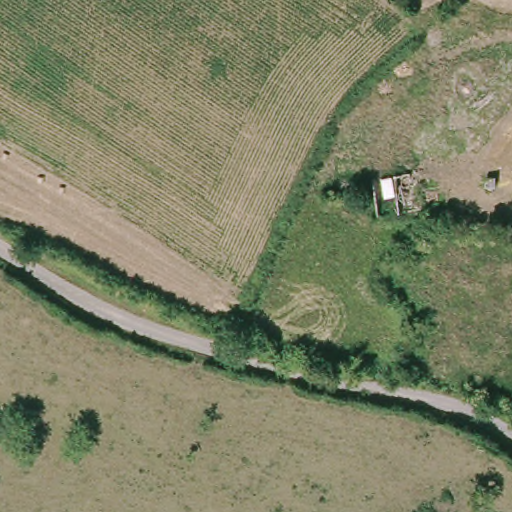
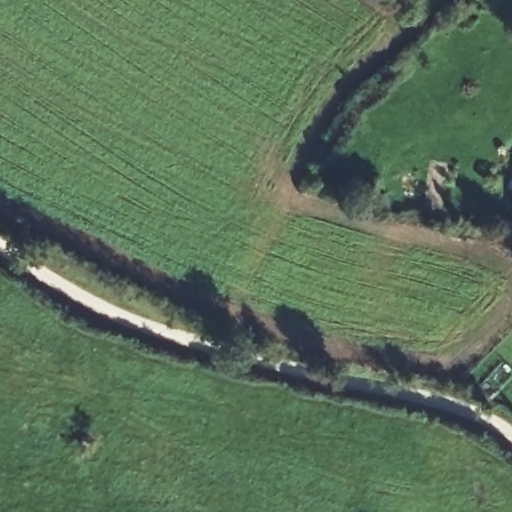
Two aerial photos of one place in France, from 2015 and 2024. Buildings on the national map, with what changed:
[]

